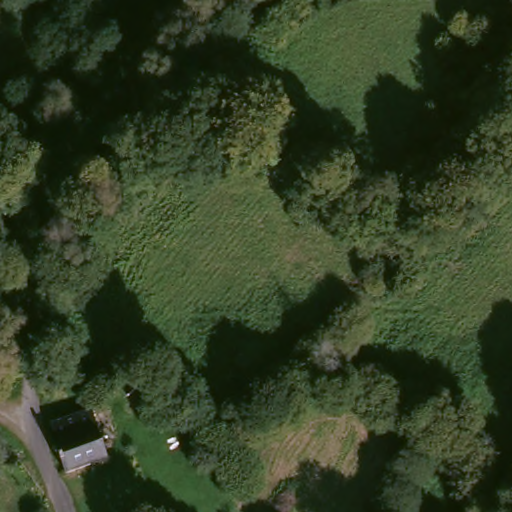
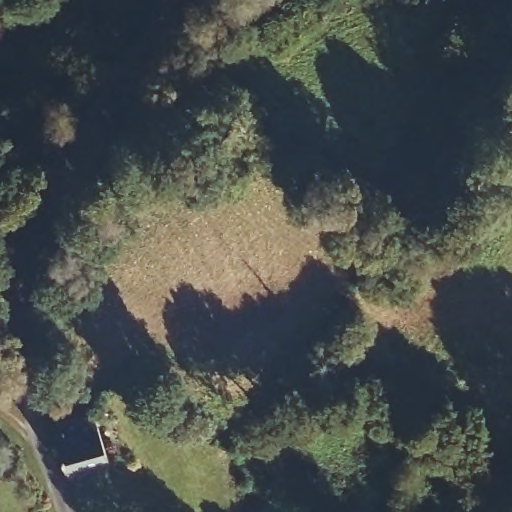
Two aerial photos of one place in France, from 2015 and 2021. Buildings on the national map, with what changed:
unchanged [(99,420),(109,447),(68,462),(58,432),(99,420)]

